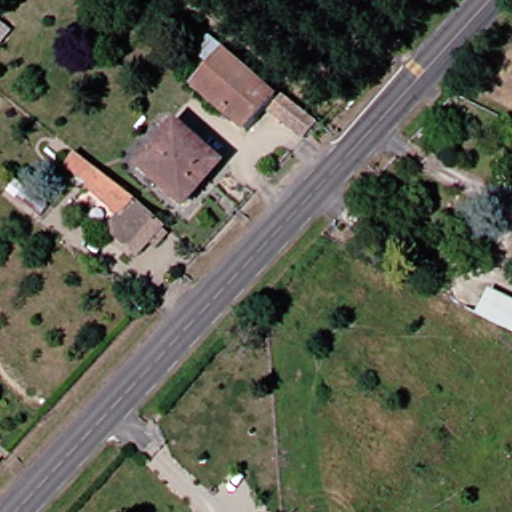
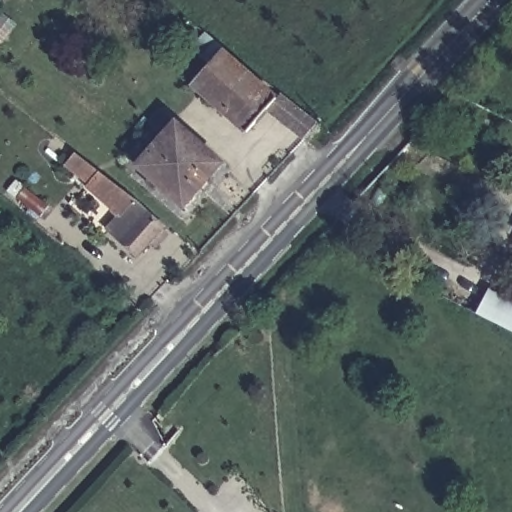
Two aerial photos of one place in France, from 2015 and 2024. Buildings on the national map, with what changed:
unchanged [(253,121),(245,132),(191,85),(219,50),(272,101),(253,121)]
unchanged [(151,196),(155,189),(129,167),(168,122),(201,148),(212,157),(193,177),(168,208),(151,196)]
unchanged [(130,199),(157,228),(161,233),(148,242),(144,240),(128,254),(100,227),(116,215),(79,184),(55,165),(69,151),(130,199)]
unchanged [(495,308),(512,317),(512,337),(488,323),(495,308)]

